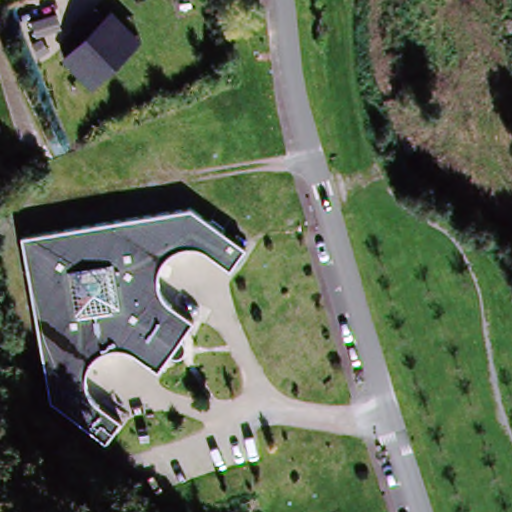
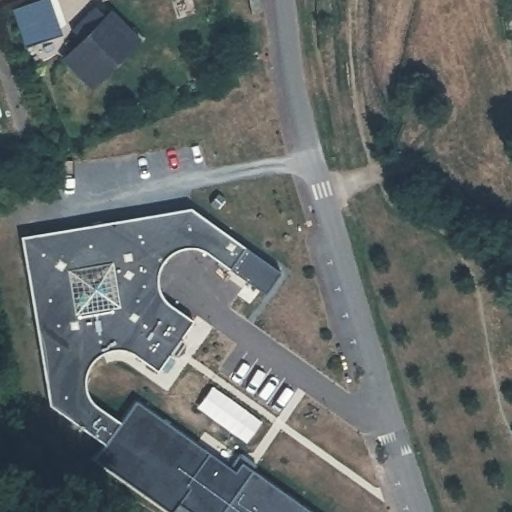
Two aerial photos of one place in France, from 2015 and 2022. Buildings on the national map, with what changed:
unchanged [(93,91),(61,59),(111,10),(141,41),(93,91)]
unchanged [(210,258),(201,253),(193,251),(183,251),(173,256),(163,265),(159,276),(159,286),(162,297),(170,306),(195,323),(182,340),(185,343),(186,348),(185,354),(181,358),(175,358),(170,357),(159,374),(135,357),(126,353),(112,354),(101,359),(91,367),(89,375),(88,384),(90,393),(92,400),(99,408),(123,425),(107,447),(70,421),(52,408),(47,384),(35,321),(25,264),(20,240),(190,211),(245,249),(230,272),(210,258)]
new [(280,272),(265,294),(230,272),(245,249),(280,272)]
new [(123,425),(139,404),(235,471),(242,461),(313,512),(188,512),(177,504),(172,512),(171,512),(100,457),(107,447),(123,425)]

